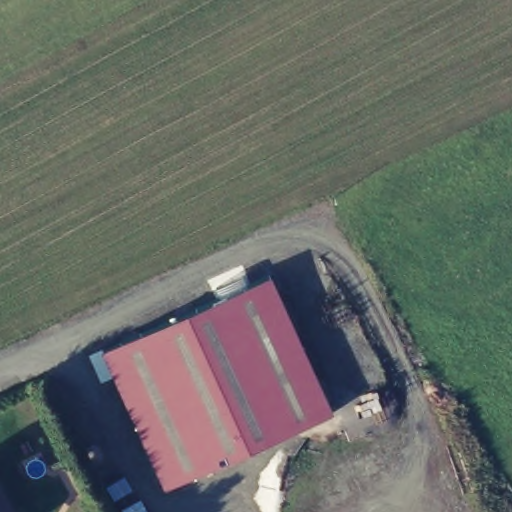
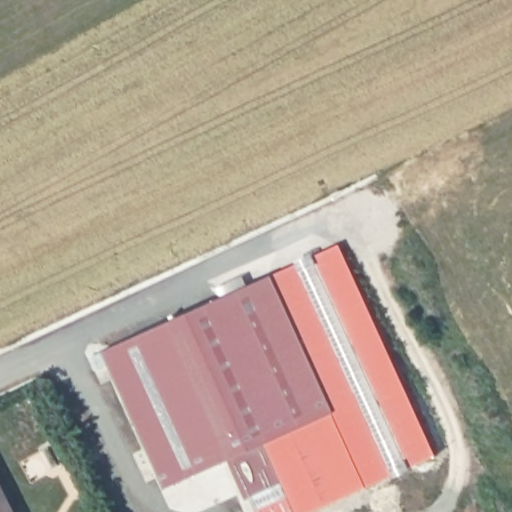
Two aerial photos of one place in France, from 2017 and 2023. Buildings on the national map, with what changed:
new [(295,512),(265,441),(334,409),(270,272),(339,243),(435,455),(305,512),(295,512)]
unchanged [(334,409),(166,485),(103,349),(270,272),(334,409)]
unchanged [(9,512),(0,512),(0,489),(9,512)]

